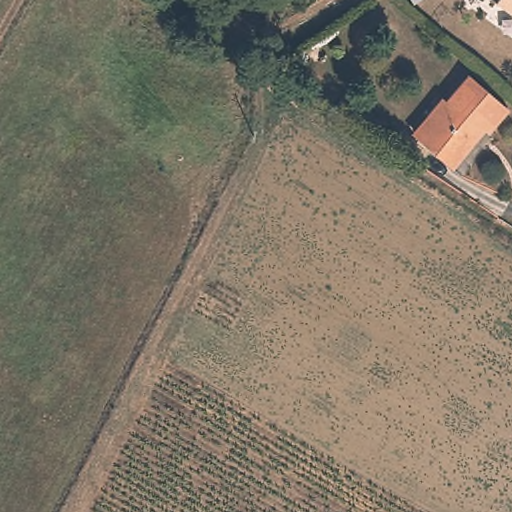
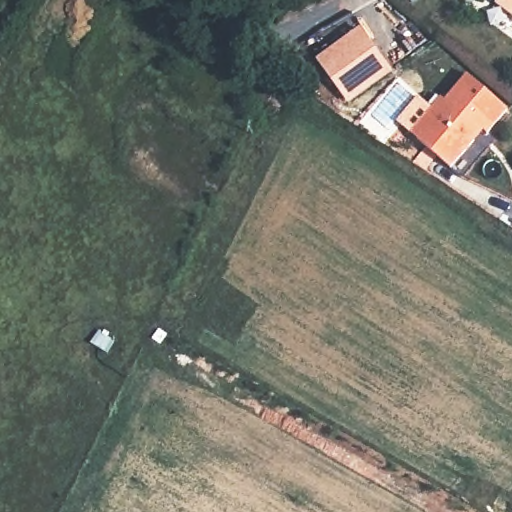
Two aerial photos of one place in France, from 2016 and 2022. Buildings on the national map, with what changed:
unchanged [(512,0),(512,17),(500,8),(505,0),(512,0)]
new [(360,27),(393,71),(347,104),(317,60),(360,27)]
unchanged [(433,154),(415,139),(428,122),(423,117),(439,98),(443,101),(465,74),(505,107),(485,133),(478,127),(469,137),(472,140),(459,156),(450,167),(433,154)]

